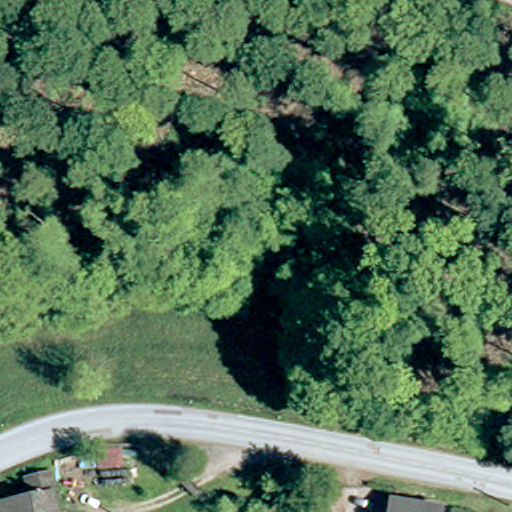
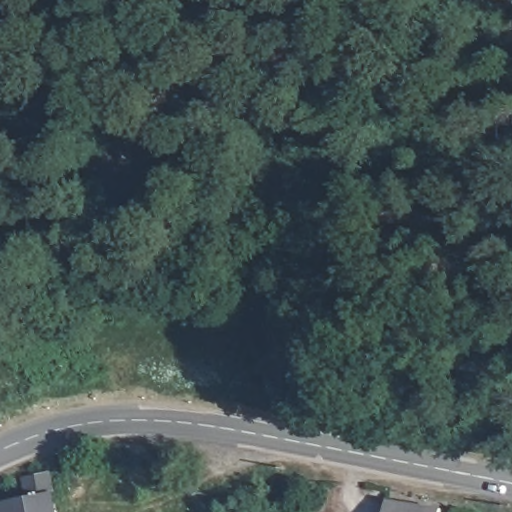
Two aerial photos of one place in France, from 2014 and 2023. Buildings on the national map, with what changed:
unchanged [(18,503),(15,484),(55,476),(62,512),(0,512),(0,507),(18,503)]
unchanged [(422,504),(446,508),(445,512),(396,512),(397,499),(422,504)]

